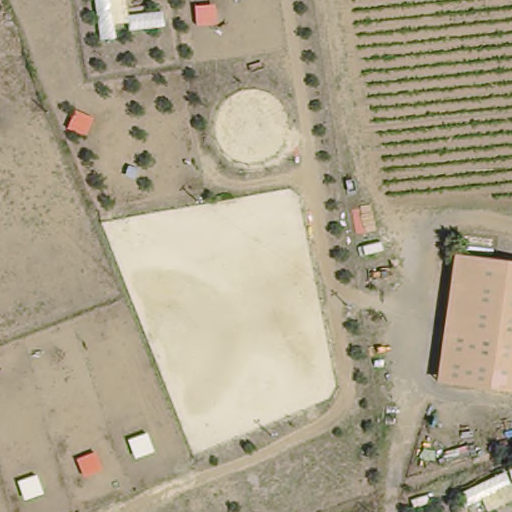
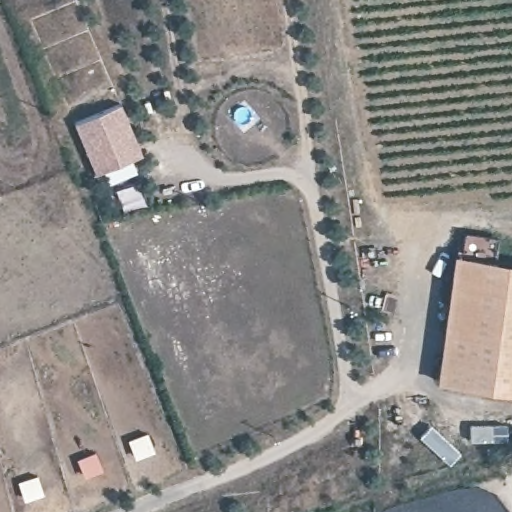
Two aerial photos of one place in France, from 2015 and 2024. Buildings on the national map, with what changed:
new [(71,122),(117,101),(140,151),(95,171),(71,122)]
unchanged [(455,253),(512,262),(512,392),(434,380),(455,253)]

